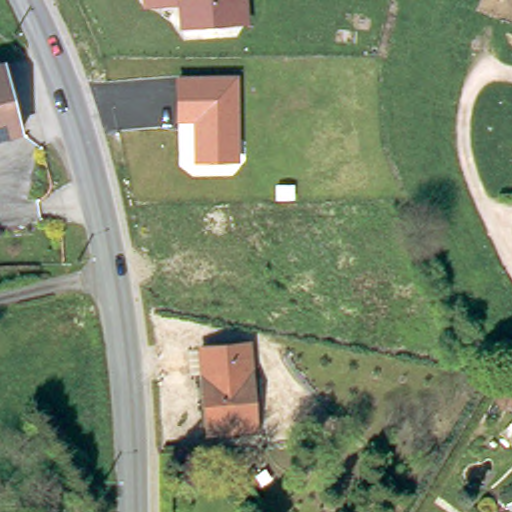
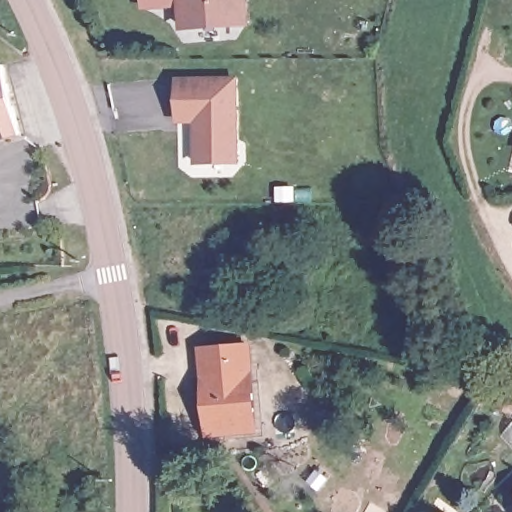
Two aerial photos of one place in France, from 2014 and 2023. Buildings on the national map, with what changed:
unchanged [(249,23),(178,27),(177,7),(140,8),(140,0),(248,0),(249,23)]
unchanged [(176,122),(177,76),(238,75),(239,163),(194,163),(193,123),(176,122)]
unchanged [(10,77),(19,130),(0,135),(0,79),(10,77)]
unchanged [(258,433),(204,436),(198,344),(252,345),(258,433)]

